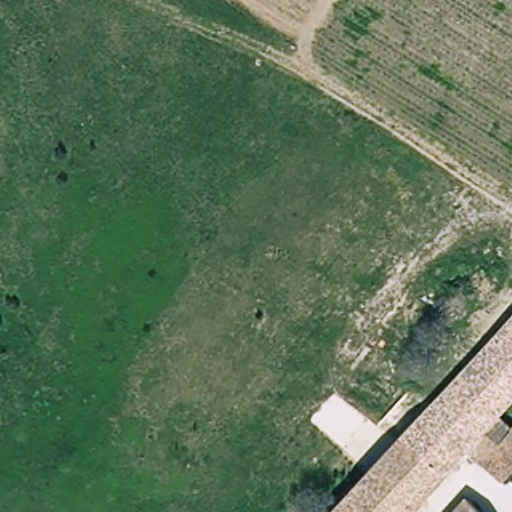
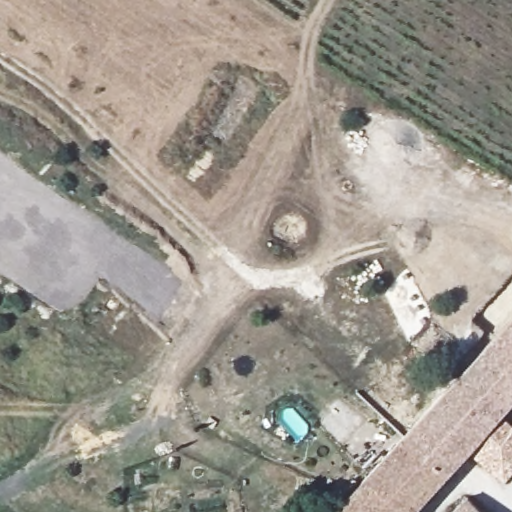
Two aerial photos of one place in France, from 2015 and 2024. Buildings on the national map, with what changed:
unchanged [(498,487),(464,456),(411,512),(344,512),(512,324),(512,402),(505,411),(512,419),(512,473),(498,487)]
unchanged [(467,500),(479,512),(456,512),(467,500)]

